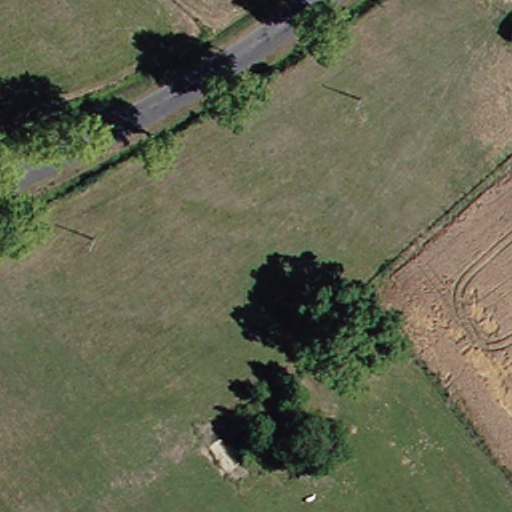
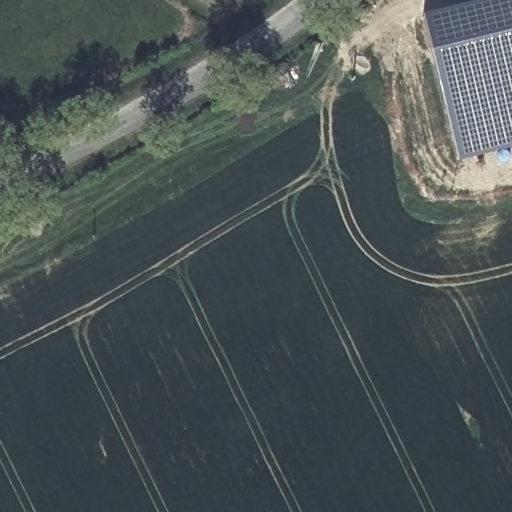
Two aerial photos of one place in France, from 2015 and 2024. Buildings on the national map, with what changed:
new [(422,15),(483,0),(512,0),(512,148),(458,162),(422,15)]

